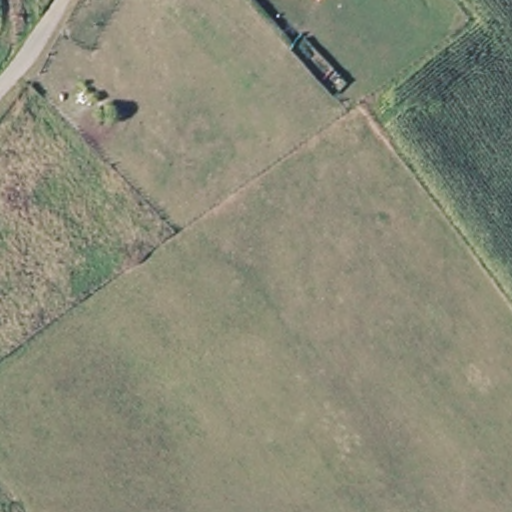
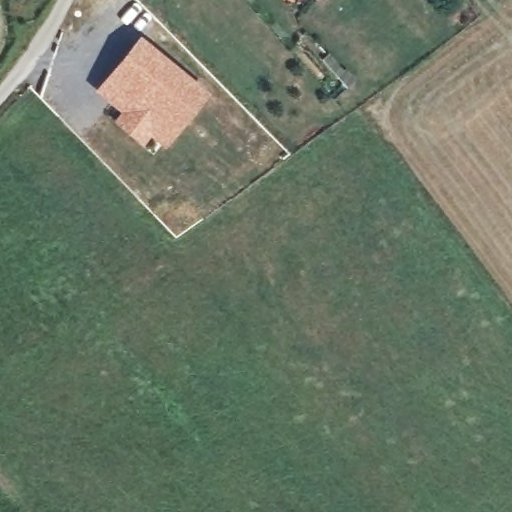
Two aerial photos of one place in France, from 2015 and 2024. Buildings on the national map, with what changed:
new [(211,91),(166,146),(152,134),(144,145),(113,119),(120,109),(95,88),(140,35),(211,91)]

